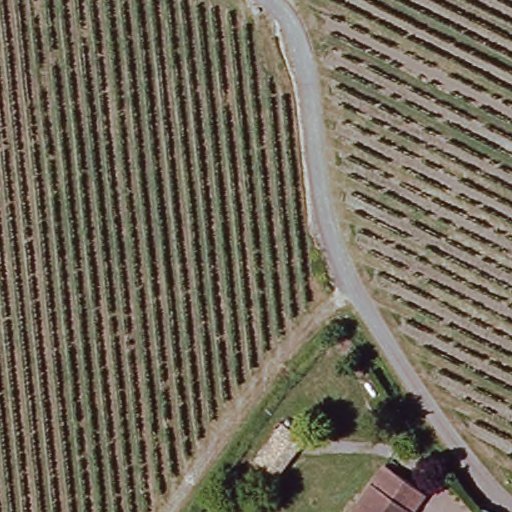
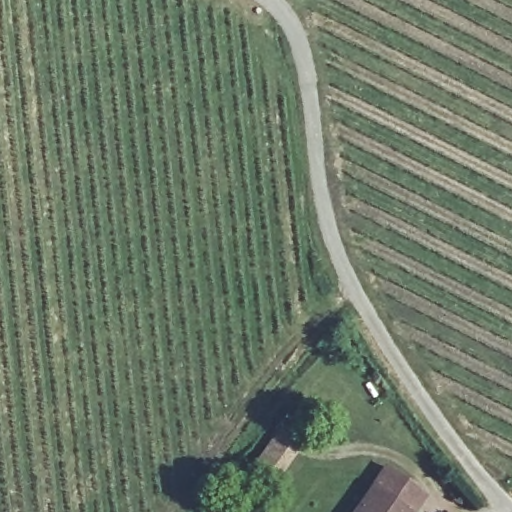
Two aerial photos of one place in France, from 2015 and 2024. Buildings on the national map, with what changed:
unchanged [(277,473),(291,453),(305,462),(290,483),(277,473)]
unchanged [(417,493),(403,512),(348,512),(379,467),(417,493)]

